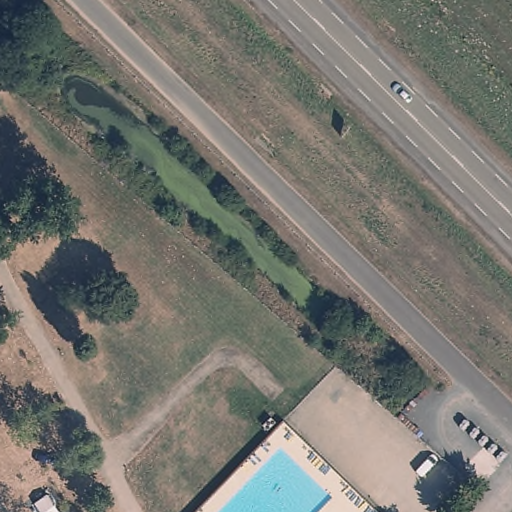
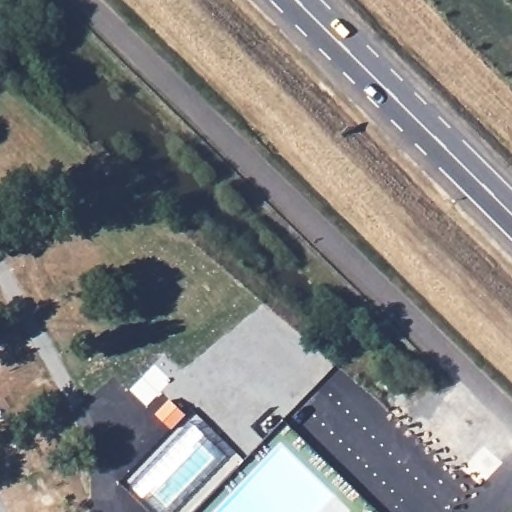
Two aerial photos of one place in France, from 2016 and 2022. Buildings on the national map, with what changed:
[]

